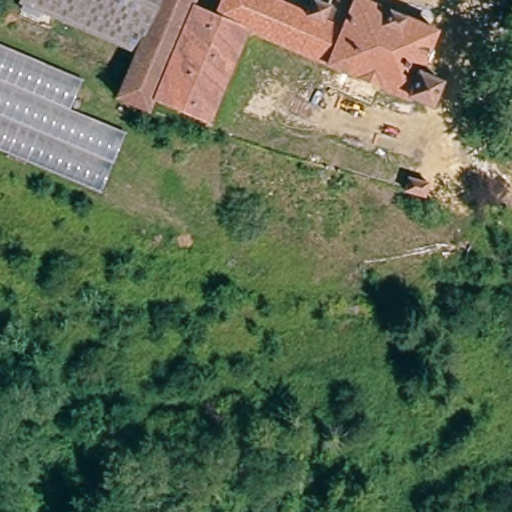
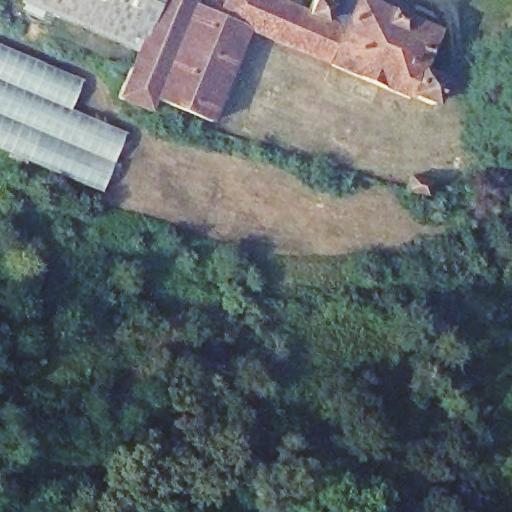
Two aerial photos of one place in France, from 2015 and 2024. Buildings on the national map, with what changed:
unchanged [(26,7),(29,0),(142,0),(124,44),(26,7)]
unchanged [(144,52),(124,44),(142,0),(200,0),(197,6),(162,95),(155,113),(126,99),(144,52)]
unchanged [(316,4),(310,18),(343,31),(335,56),(254,27),(222,16),(228,0),(305,0),(316,4)]
unchanged [(317,0),(393,0),(446,20),(431,60),(452,68),(446,87),(438,85),(436,93),(416,85),(335,56),(343,31),(310,18),(316,4),(317,0)]
unchanged [(217,117),(162,95),(197,6),(222,16),(254,27),(217,117)]
unchanged [(0,146),(0,46),(87,83),(76,108),(130,134),(106,191),(0,146)]
unchanged [(414,185),(418,169),(433,173),(429,189),(414,185)]

